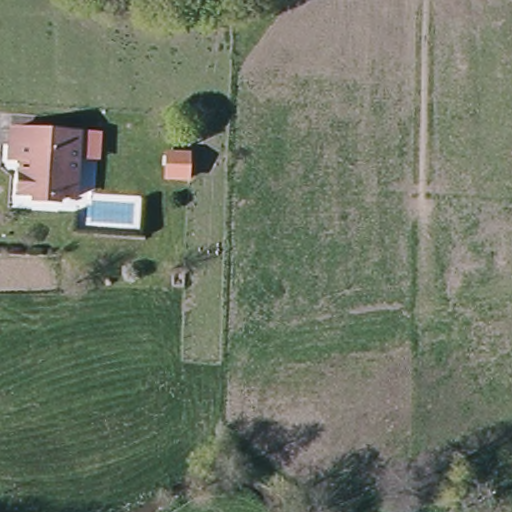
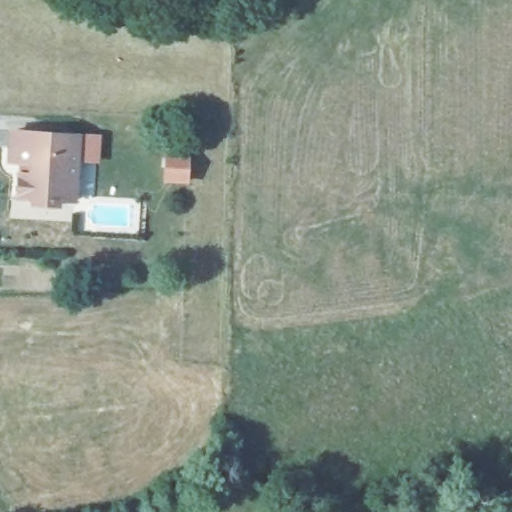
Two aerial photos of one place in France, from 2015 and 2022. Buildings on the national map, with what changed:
unchanged [(9,163),(11,131),(77,134),(74,201),(18,198),(20,174),(20,163),(9,163)]

